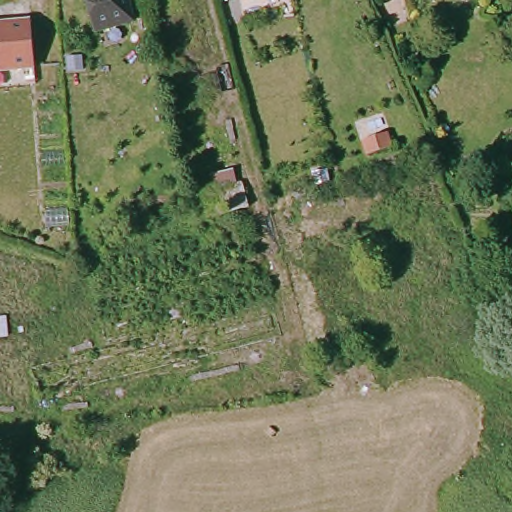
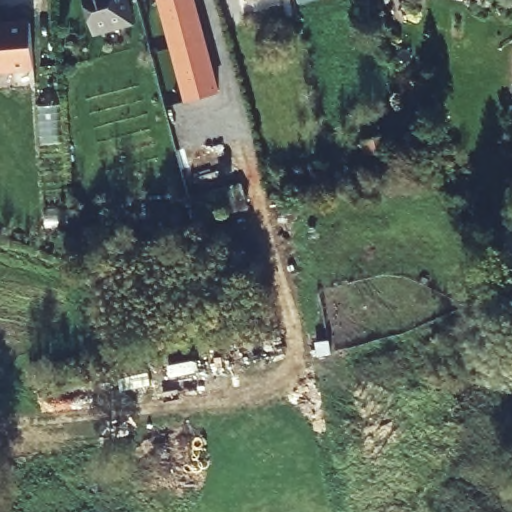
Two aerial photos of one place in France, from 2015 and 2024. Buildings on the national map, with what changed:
unchanged [(91,0),(128,0),(133,21),(97,30),(91,0)]
new [(221,92),(185,102),(157,0),(196,0),(221,92)]
unchanged [(0,74),(0,23),(31,21),(34,71),(0,74)]

